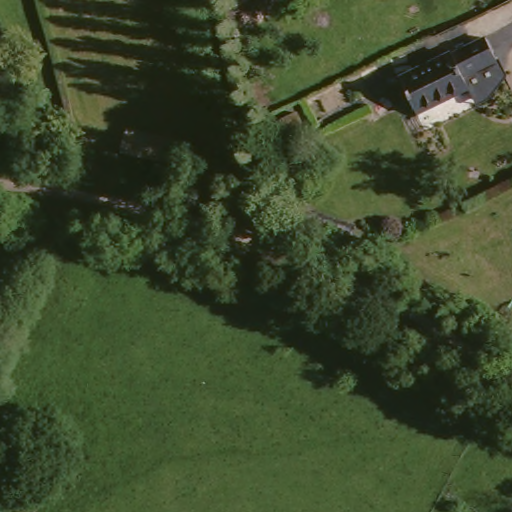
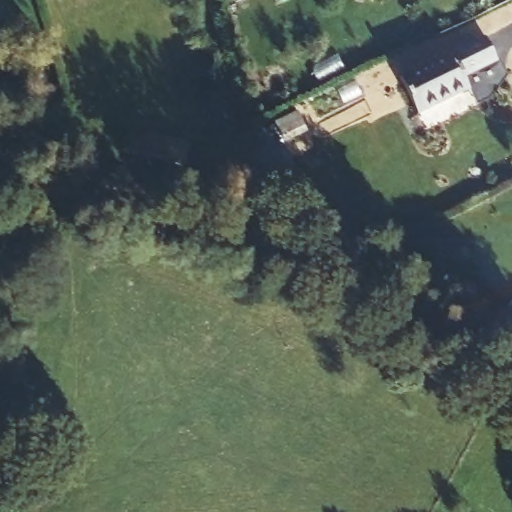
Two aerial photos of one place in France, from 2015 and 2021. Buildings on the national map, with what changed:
unchanged [(501,61),(509,79),(477,95),(473,87),(422,115),(405,81),(489,39),(501,61)]

